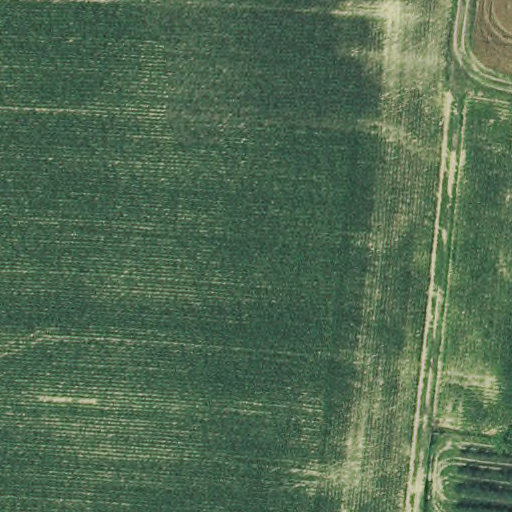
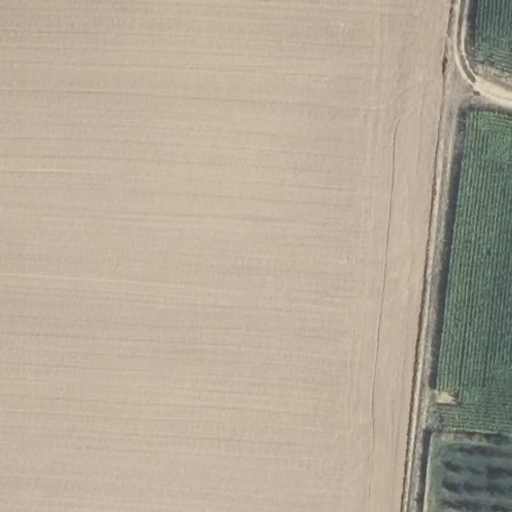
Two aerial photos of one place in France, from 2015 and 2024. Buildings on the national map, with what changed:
[]

